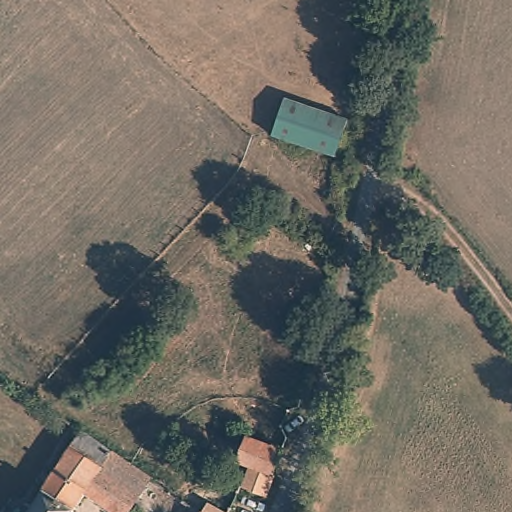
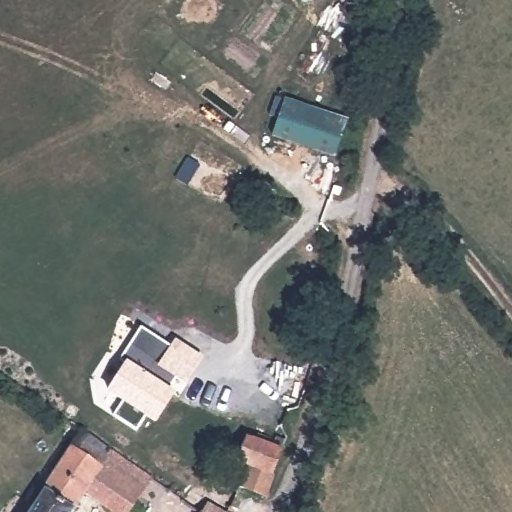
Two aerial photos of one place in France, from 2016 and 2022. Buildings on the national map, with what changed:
unchanged [(347,119),(335,156),(272,136),(285,98),(347,119)]
new [(124,402),(106,390),(123,363),(118,359),(141,324),(171,344),(175,336),(204,355),(185,383),(175,377),(169,386),(175,391),(155,423),(145,416),(136,431),(112,416),(124,402)]
unchanged [(110,442),(157,474),(131,512),(125,512),(90,488),(75,512),(30,512),(85,426),(110,442)]
unchanged [(286,439),(270,486),(247,479),(255,457),(242,451),(250,427),(286,439)]
unchanged [(200,507),(207,498),(231,512),(197,512),(200,507)]

